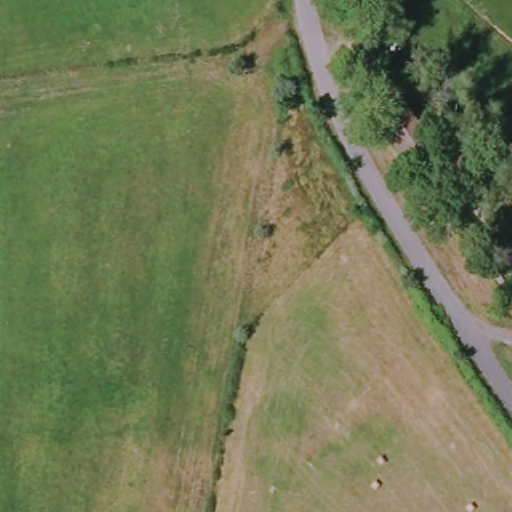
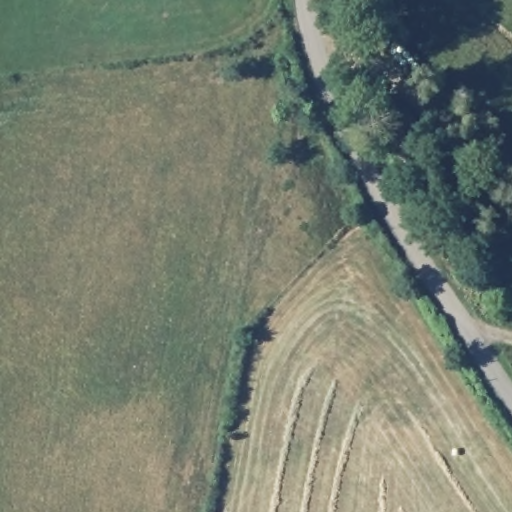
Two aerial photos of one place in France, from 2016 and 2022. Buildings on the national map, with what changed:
unchanged [(407,111),(430,144),(405,160),(382,127),(407,111)]

